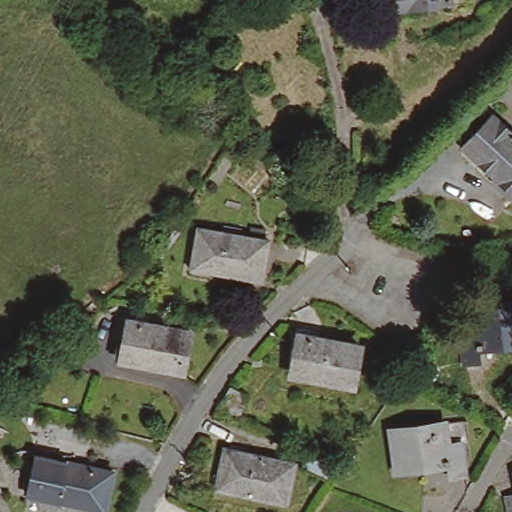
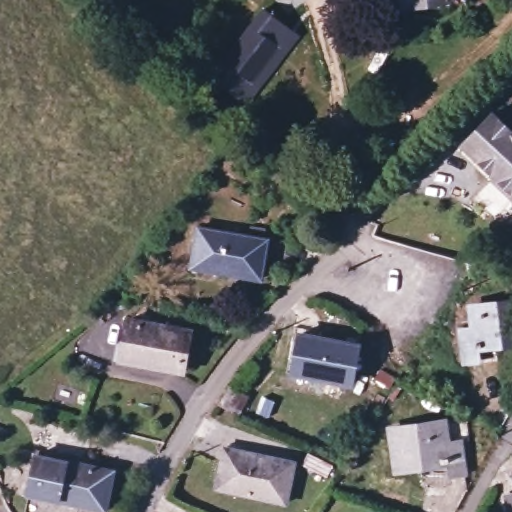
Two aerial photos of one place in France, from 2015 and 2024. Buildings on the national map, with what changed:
unchanged [(381,1),(381,0),(391,0),(381,1)]
new [(207,78),(206,77),(222,54),(263,6),(302,35),(246,109),(227,97),(202,83),(207,78)]
unchanged [(486,176),(453,144),(483,111),(507,133),(512,128),(512,189),(511,190),(490,172),(486,176)]
unchanged [(263,265),(193,250),(202,214),(272,228),(263,265)]
unchanged [(473,348),(458,349),(456,322),(466,320),(465,299),(512,293),(512,332),(472,336),(473,348)]
unchanged [(130,362),(136,332),(111,326),(114,310),(137,315),(139,315),(144,316),(147,317),(152,318),(151,323),(197,334),(189,373),(130,362)]
unchanged [(340,386),(280,376),(287,342),(288,337),(291,337),(296,338),(299,339),(305,340),(309,341),(348,348),(340,386)]
unchanged [(455,468),(439,470),(438,459),(387,466),(382,425),(435,418),(437,440),(451,438),(455,468)]
unchanged [(279,500),(258,495),(236,491),(213,487),(212,487),(220,446),(224,447),(226,442),(229,442),(233,443),(239,444),(242,445),(241,450),(288,459),(279,500)]
unchanged [(26,451),(34,453),(33,454),(32,460),(25,459),(26,451)]
unchanged [(32,460),(52,463),(55,463),(60,464),(65,466),(70,467),(113,475),(104,512),(88,512),(42,502),(23,498),(25,491),(32,460)]
unchanged [(512,489),(512,512),(504,512),(504,489),(512,489)]

